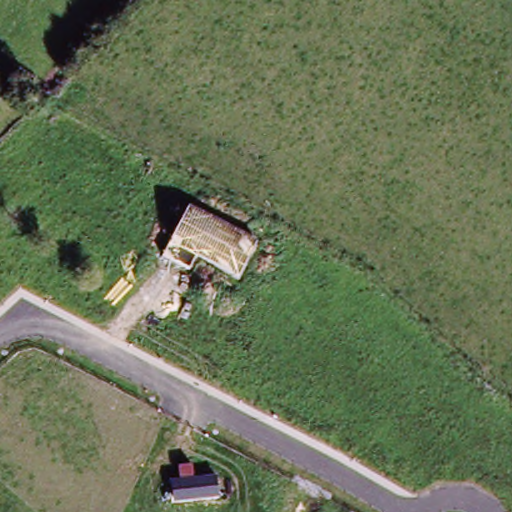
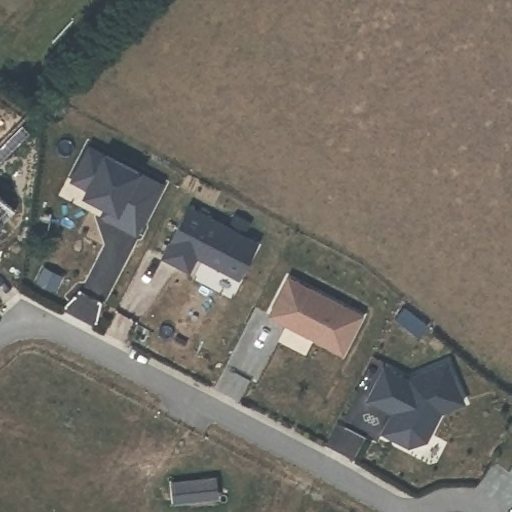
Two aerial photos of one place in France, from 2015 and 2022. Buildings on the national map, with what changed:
new [(66,176),(84,141),(150,177),(158,181),(149,199),(131,232),(96,213),(101,204),(79,192),(82,185),(66,176)]
unchanged [(162,256),(189,206),(255,240),(237,277),(195,256),(189,269),(162,256)]
new [(4,223),(0,226),(0,219),(4,223)]
new [(363,314),(343,353),(267,315),(287,274),(363,314)]
demolished [(156,285),(177,294),(182,284),(208,298),(202,309),(179,297),(134,393),(110,382),(156,285)]
new [(408,377),(447,360),(465,401),(440,413),(427,439),(408,446),(380,431),(390,412),(365,399),(383,363),(408,377)]
unchanged [(173,503),(171,480),(179,479),(178,466),(192,465),(194,478),(215,477),(219,498),(173,503)]

